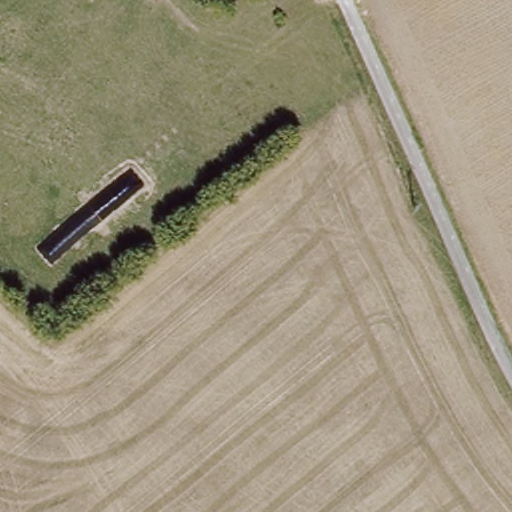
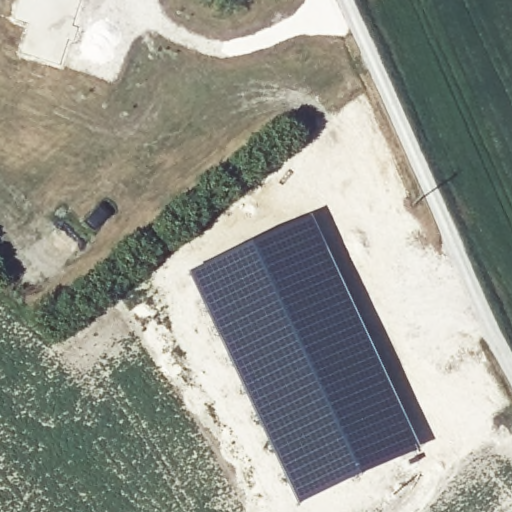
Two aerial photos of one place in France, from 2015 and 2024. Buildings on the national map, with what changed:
new [(309,215),(389,386),(418,452),(294,508),(275,468),(184,275),(309,215)]

